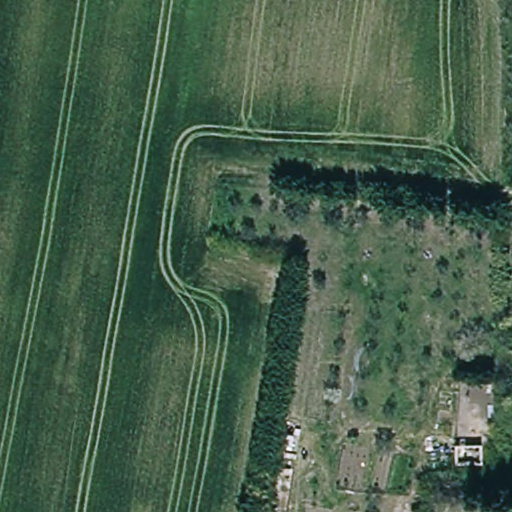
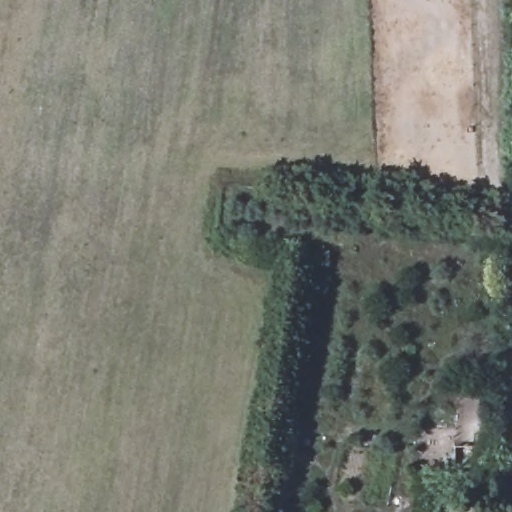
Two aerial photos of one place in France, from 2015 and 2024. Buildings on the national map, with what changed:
[]

